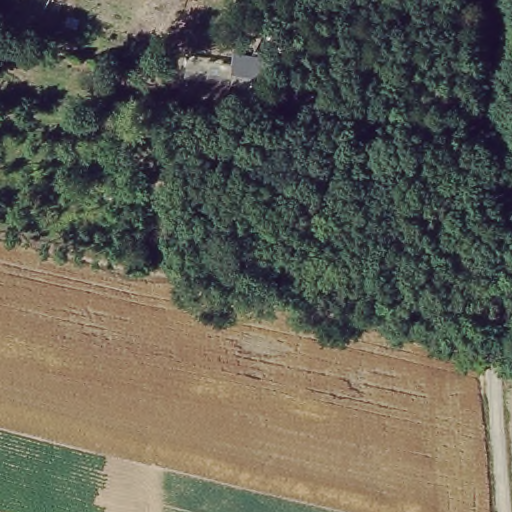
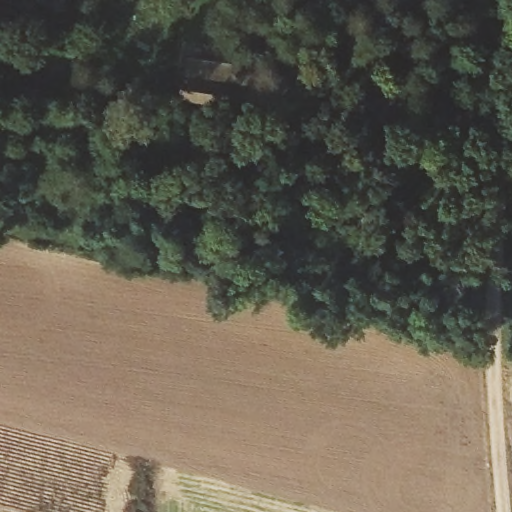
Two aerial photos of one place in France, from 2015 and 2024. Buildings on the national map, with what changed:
unchanged [(227,116),(179,111),(184,80),(231,84),(227,116)]

